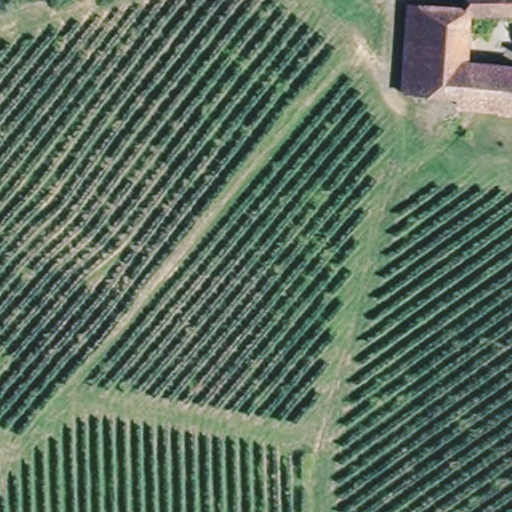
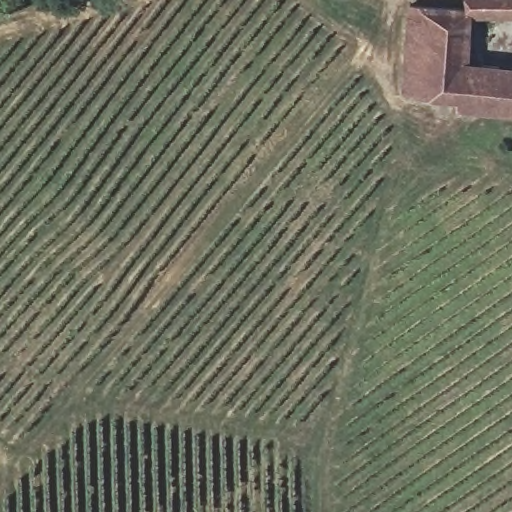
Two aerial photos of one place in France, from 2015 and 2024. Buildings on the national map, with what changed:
unchanged [(407,0),(512,0),(512,10),(472,11),(471,58),(512,61),(512,106),(460,102),(461,89),(403,86),(406,61),(407,0)]

